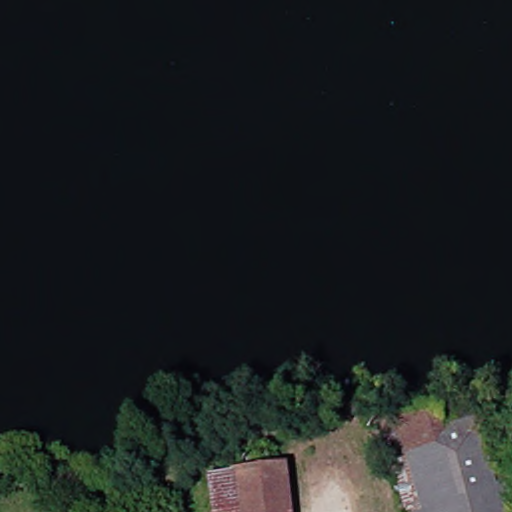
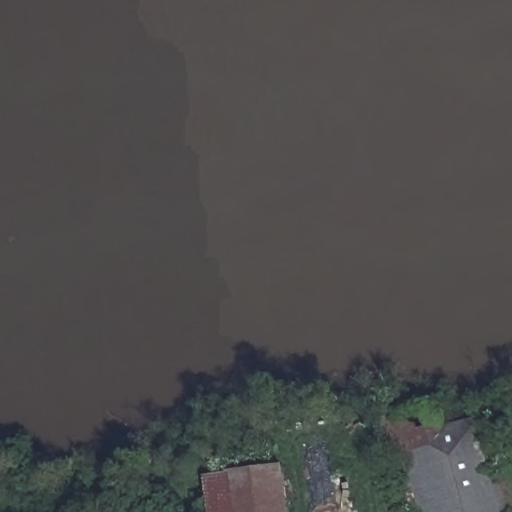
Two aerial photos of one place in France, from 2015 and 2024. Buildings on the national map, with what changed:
unchanged [(473,420),(477,435),(505,427),(510,444),(498,448),(510,500),(492,505),(470,512),(409,512),(414,510),(386,420),(426,407),(429,417),(469,404),(473,420)]
unchanged [(386,420),(414,510),(409,512),(400,512),(372,423),(386,420)]
unchanged [(203,512),(199,478),(271,471),(275,512),(203,512)]
unchanged [(494,512),(470,512),(492,505),(494,512)]

